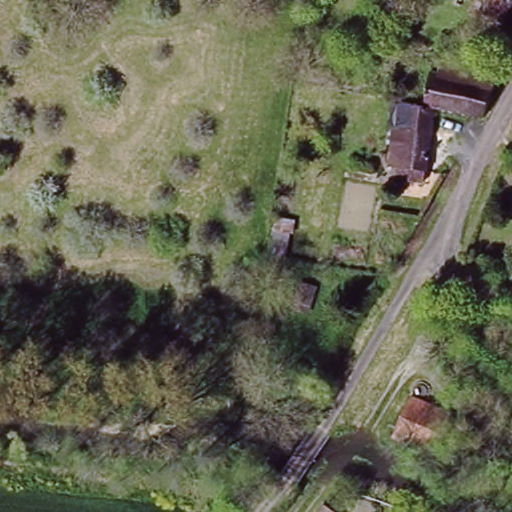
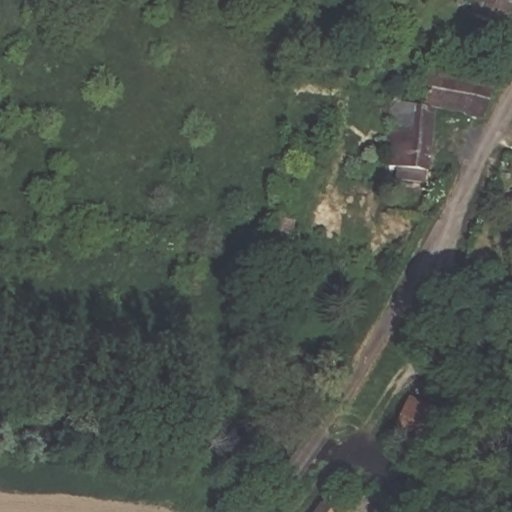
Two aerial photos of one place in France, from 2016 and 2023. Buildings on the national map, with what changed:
unchanged [(471,0),(509,0),(499,23),(467,8),(471,0)]
unchanged [(439,106),(440,104),(426,100),(433,71),(439,73),(442,63),(498,78),(484,118),(439,106)]
unchanged [(397,166),(391,165),(393,139),(394,126),(389,125),(392,99),(434,109),(434,113),(428,167),(426,167),(424,179),(402,177),(396,177),(397,166)]
unchanged [(292,252),(274,246),(282,219),(300,223),(292,252)]
unchanged [(339,485),(356,496),(343,512),(318,512),(339,485)]

